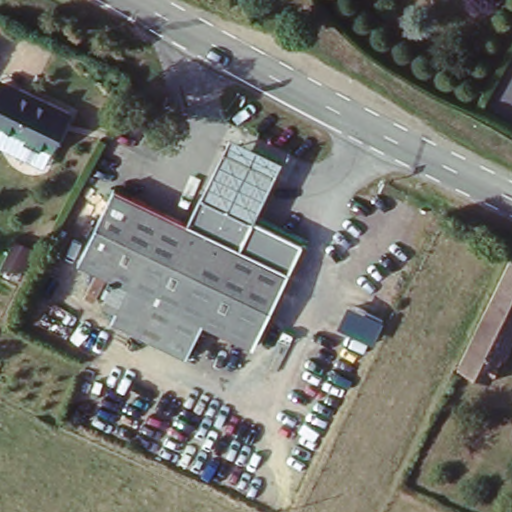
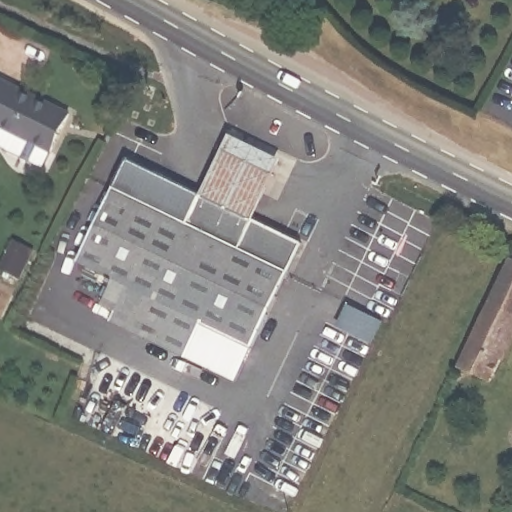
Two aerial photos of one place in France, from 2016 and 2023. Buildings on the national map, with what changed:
unchanged [(0,126),(0,88),(10,92),(13,86),(65,111),(46,147),(0,126)]
unchanged [(236,137),(284,161),(251,222),(200,197),(236,137)]
unchanged [(125,163),(200,197),(251,222),(303,246),(289,277),(250,350),(234,383),(183,359),(105,325),(113,312),(100,306),(109,285),(73,267),(111,193),(125,163)]
unchanged [(512,338),(490,380),(458,365),(511,262),(512,263),(512,338)]

